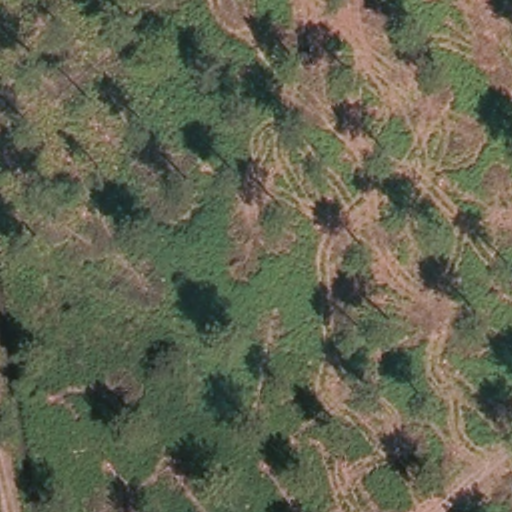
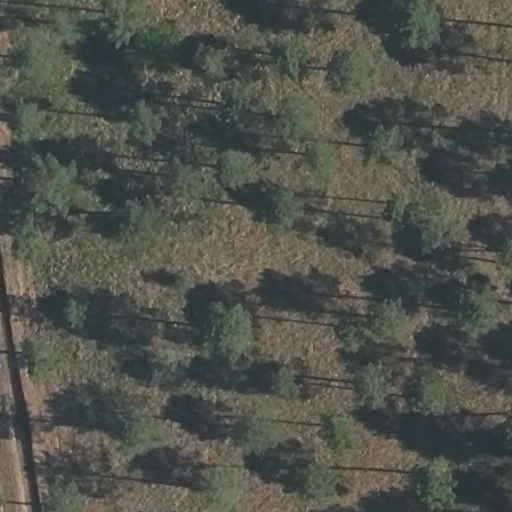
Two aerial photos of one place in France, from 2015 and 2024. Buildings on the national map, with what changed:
[]

